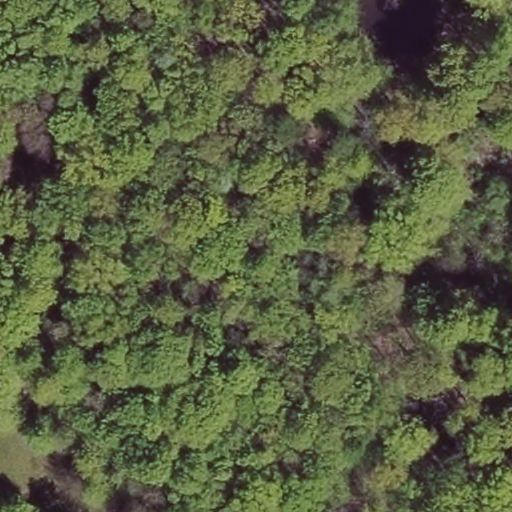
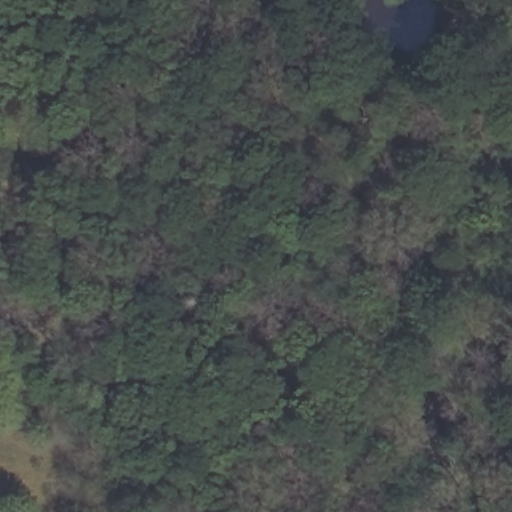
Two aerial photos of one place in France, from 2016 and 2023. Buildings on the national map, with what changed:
[]

